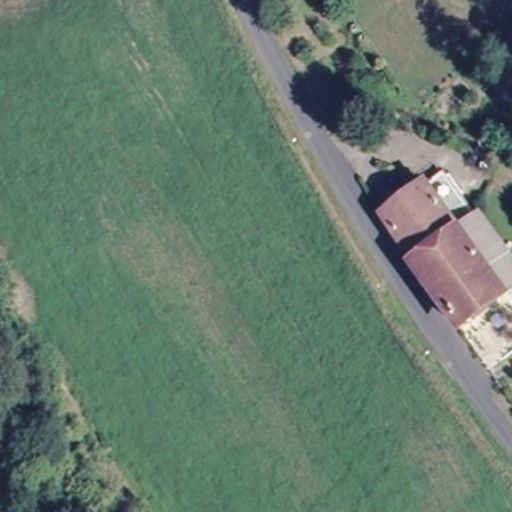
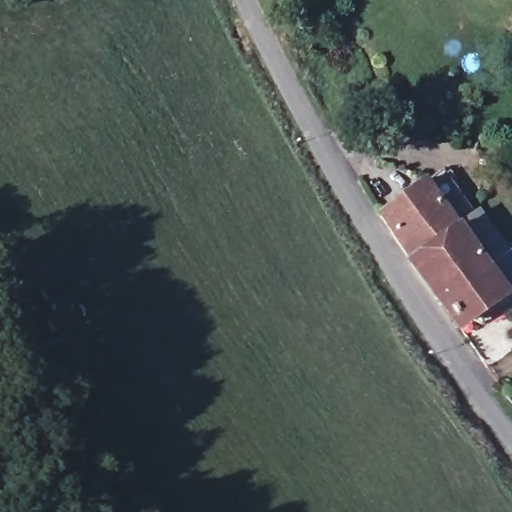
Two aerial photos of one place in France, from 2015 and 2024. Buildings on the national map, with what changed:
unchanged [(422,188),(452,227),(411,260),(380,215),(422,188)]
unchanged [(476,212),(501,243),(512,236),(512,282),(457,324),(411,260),(452,227),(476,212)]

